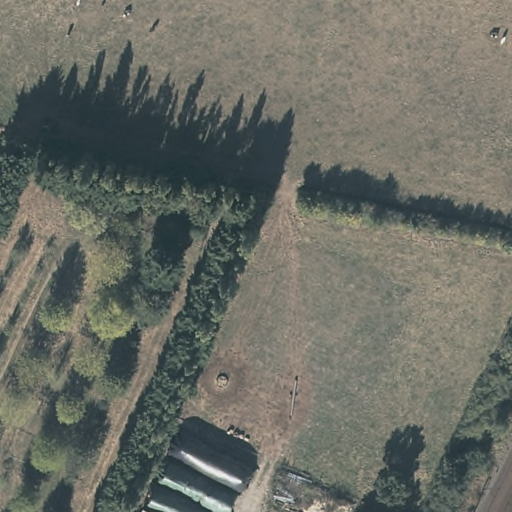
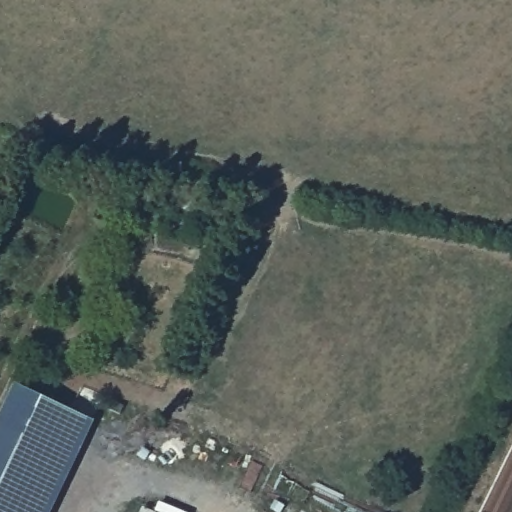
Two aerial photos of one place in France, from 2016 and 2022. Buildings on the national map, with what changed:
new [(18,383),(96,421),(53,512),(0,512),(0,422),(18,383)]
unchanged [(143,506),(157,512),(140,512),(143,506)]

